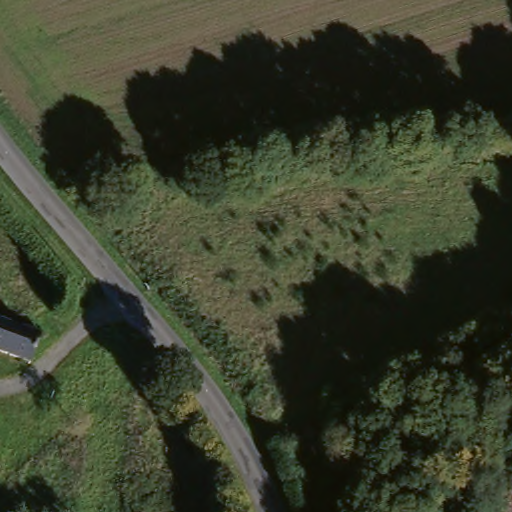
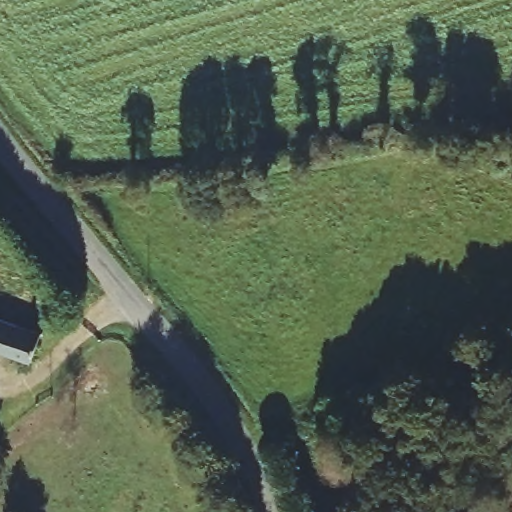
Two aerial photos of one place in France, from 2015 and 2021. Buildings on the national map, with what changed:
unchanged [(29,363),(0,357),(0,327),(37,335),(29,363)]

